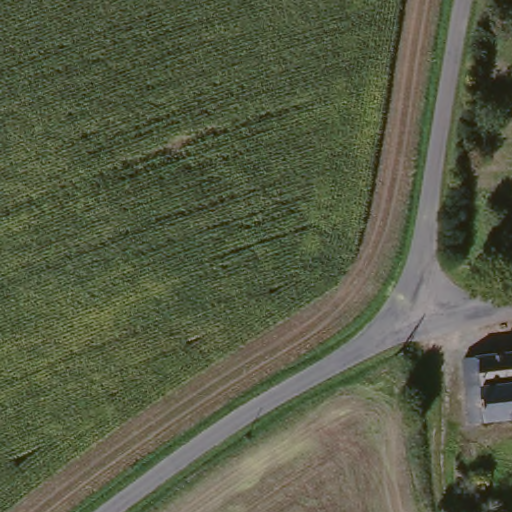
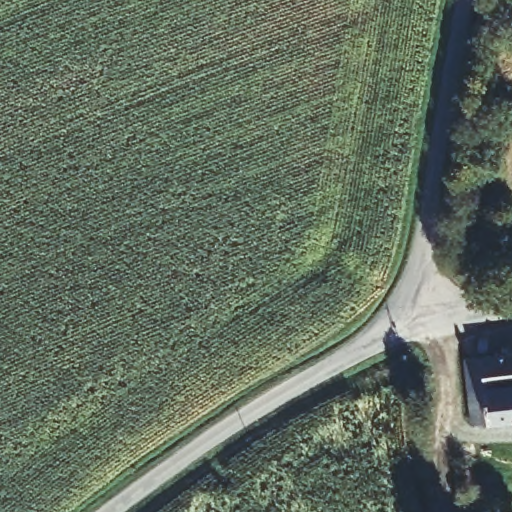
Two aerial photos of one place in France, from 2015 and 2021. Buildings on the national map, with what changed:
unchanged [(512,428),(476,435),(469,435),(461,368),(512,358),(512,428)]

